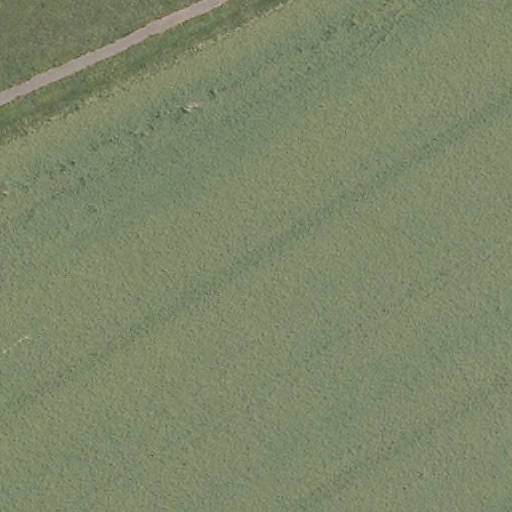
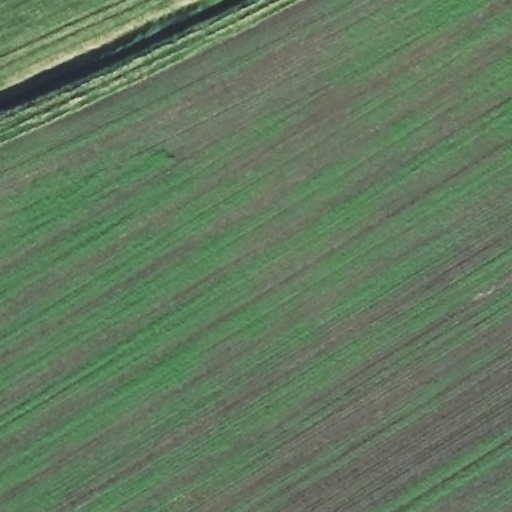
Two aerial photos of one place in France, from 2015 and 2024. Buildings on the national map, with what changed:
[]

